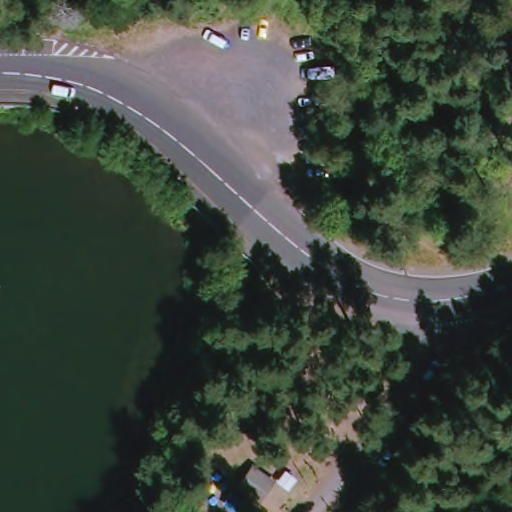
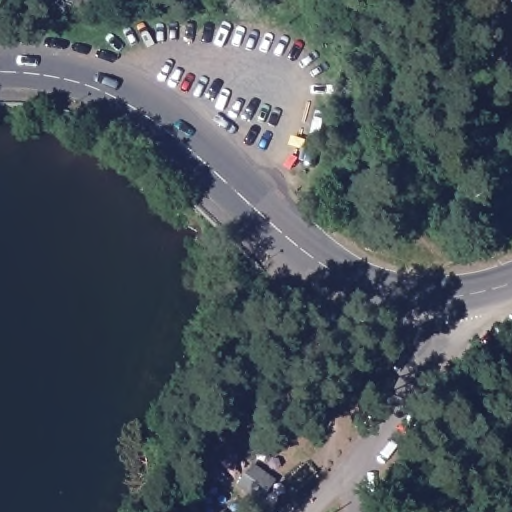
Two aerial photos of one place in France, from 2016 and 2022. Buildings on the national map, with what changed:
unchanged [(256,471),(259,488),(251,499),(233,486),(247,467),(256,471)]

